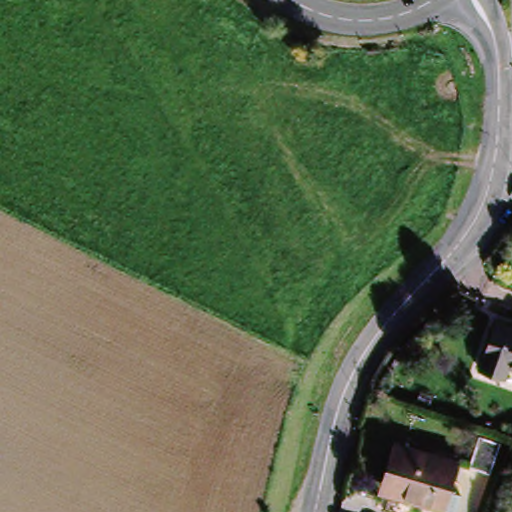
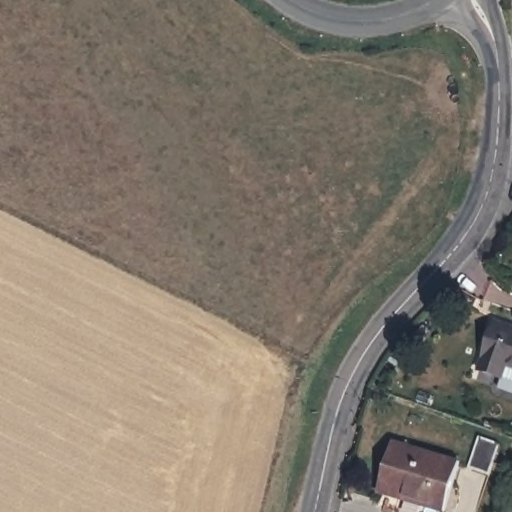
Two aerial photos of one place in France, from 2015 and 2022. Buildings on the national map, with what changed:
unchanged [(497,378),(477,370),(494,322),(512,328),(512,368),(508,367),(503,380),(497,378)]
unchanged [(478,436),(499,443),(487,475),(467,467),(478,436)]
unchanged [(442,511),(386,495),(377,493),(392,443),(402,445),(457,462),(442,511)]

